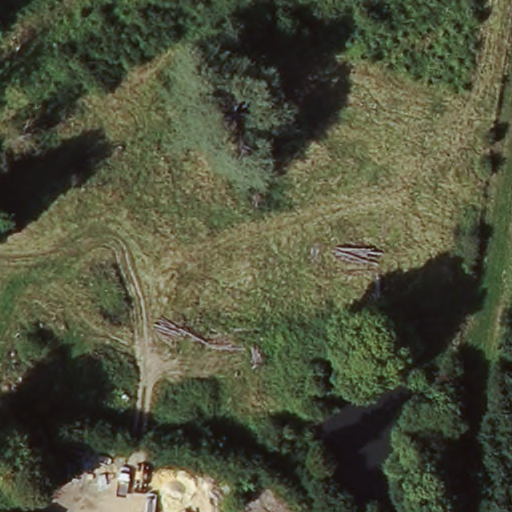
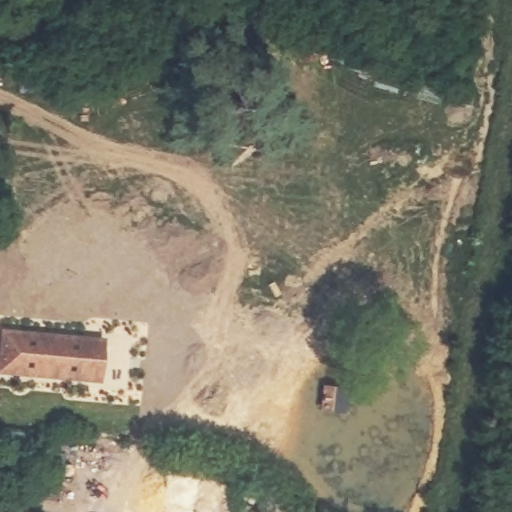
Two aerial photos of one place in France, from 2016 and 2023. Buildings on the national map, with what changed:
new [(97,377),(0,368),(0,329),(101,340),(97,377)]
unchanged [(0,507),(46,512),(0,512),(0,507)]

